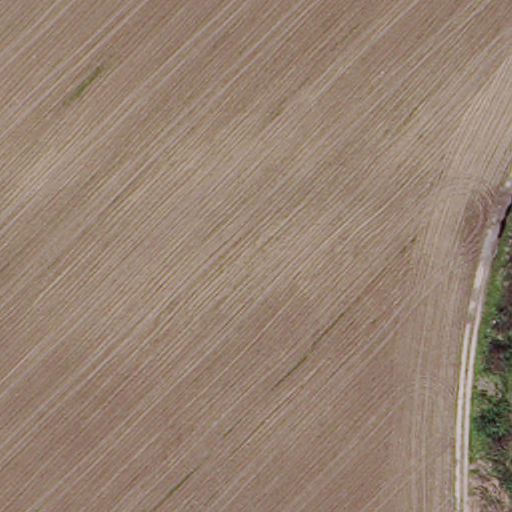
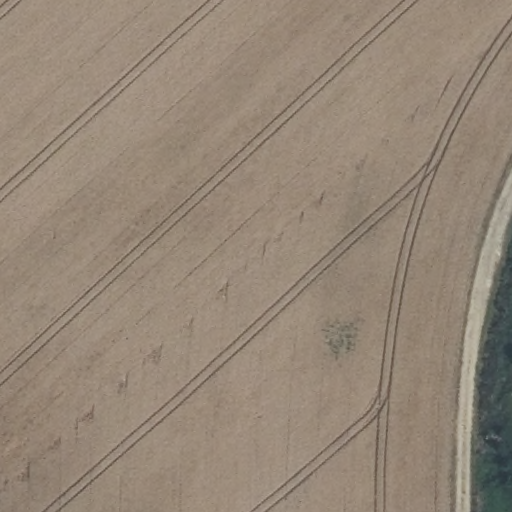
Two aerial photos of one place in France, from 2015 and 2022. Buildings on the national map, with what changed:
[]

